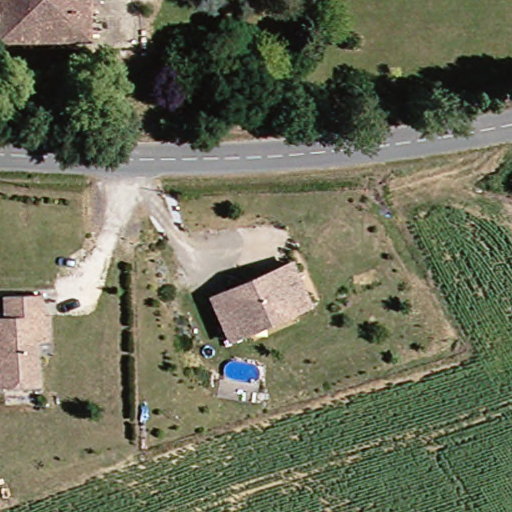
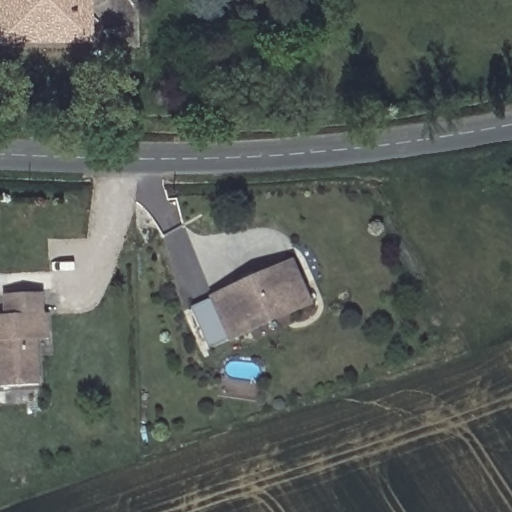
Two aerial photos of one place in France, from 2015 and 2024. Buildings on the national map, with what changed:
unchanged [(97,0),(98,39),(3,40),(1,0),(97,0)]
unchanged [(238,338),(236,334),(220,296),(300,262),(310,285),(318,304),(299,312),(257,330),(238,338)]
unchanged [(3,386),(0,317),(10,316),(9,296),(45,294),(46,316),(50,316),(52,340),(39,341),(41,386),(3,386)]

